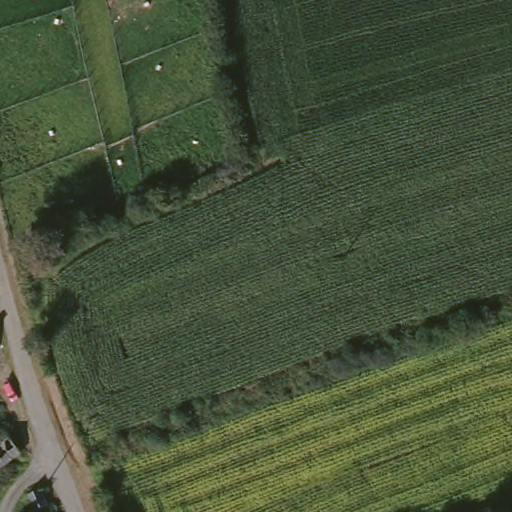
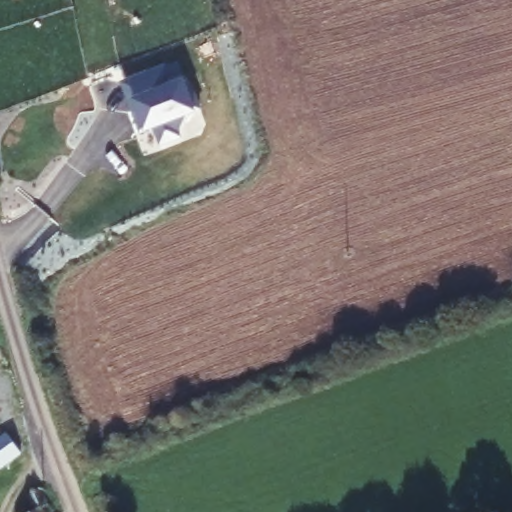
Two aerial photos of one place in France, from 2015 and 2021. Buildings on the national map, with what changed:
new [(155,129),(144,133),(144,129),(140,133),(121,82),(166,64),(174,82),(185,78),(186,81),(191,81),(203,111),(196,113),(184,118),(179,131),(182,139),(161,146),(155,129)]
unchanged [(16,426),(31,448),(0,469),(0,437),(3,435),(16,426)]

